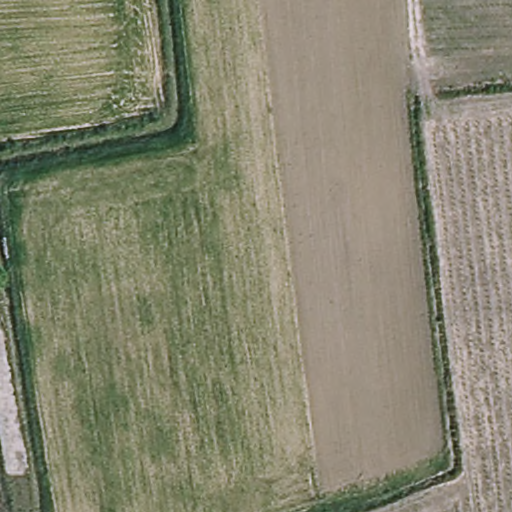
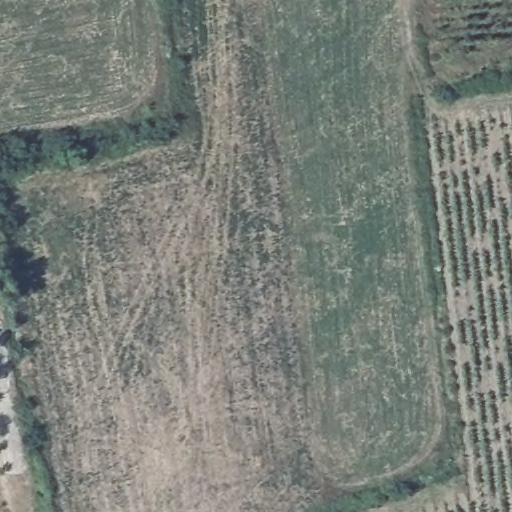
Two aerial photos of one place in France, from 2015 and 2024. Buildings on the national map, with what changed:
[]

